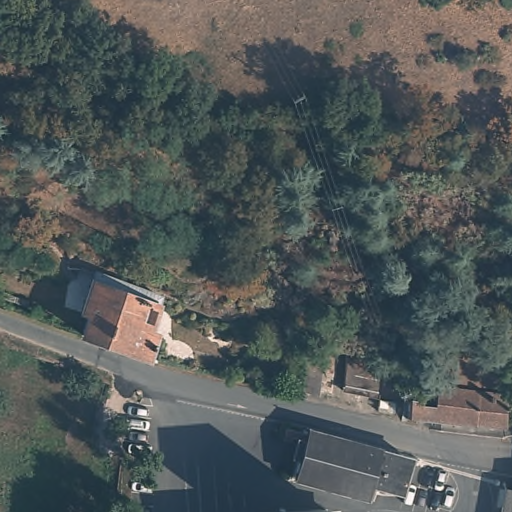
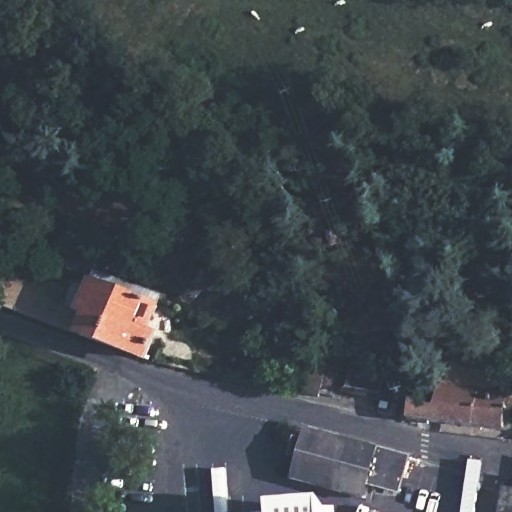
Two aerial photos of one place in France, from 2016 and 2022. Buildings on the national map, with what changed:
unchanged [(160,343),(151,373),(81,352),(91,322),(77,315),(97,255),(145,270),(166,277),(146,336),(160,343)]
unchanged [(320,354),(314,388),(301,386),(308,352),(320,354)]
unchanged [(338,401),(345,360),(376,367),(369,406),(338,401)]
unchanged [(399,405),(410,406),(412,392),(501,402),(498,432),(417,422),(397,420),(399,405)]
unchanged [(380,447),(409,454),(399,496),(368,488),(364,500),(291,480),(305,428),(380,447)]
unchanged [(500,512),(503,492),(512,493),(512,512),(500,512)]

